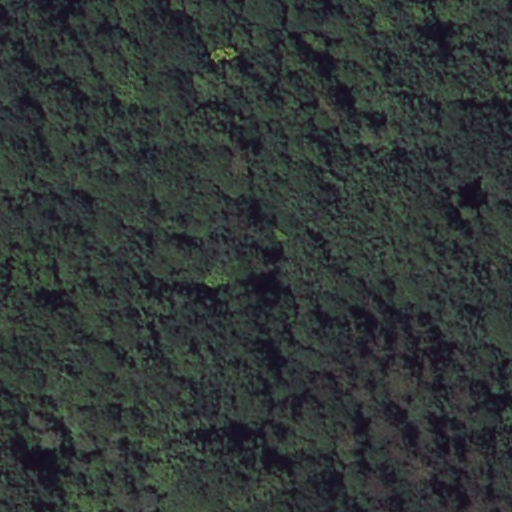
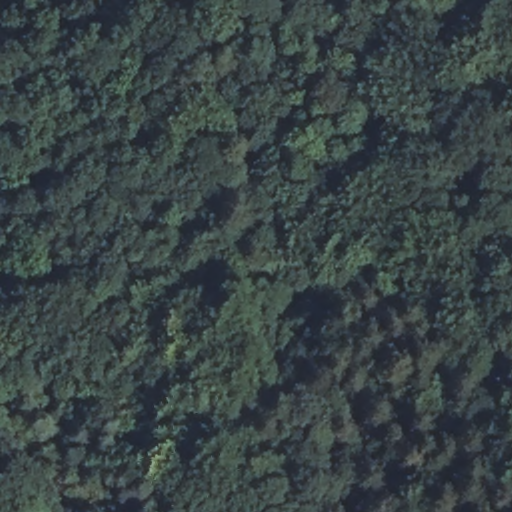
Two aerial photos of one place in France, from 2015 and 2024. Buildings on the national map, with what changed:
[]

